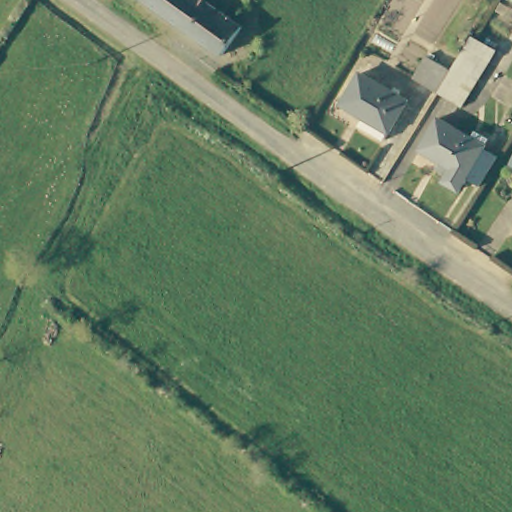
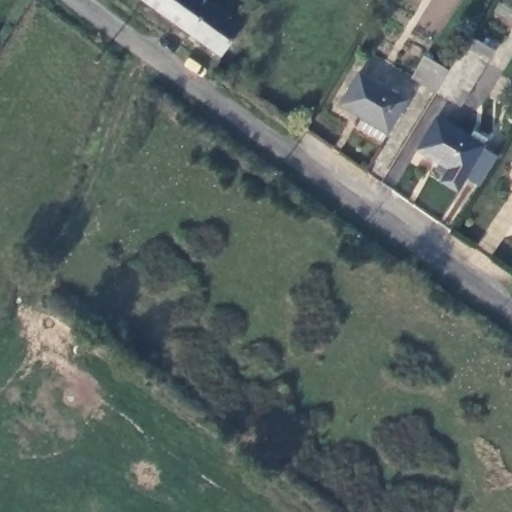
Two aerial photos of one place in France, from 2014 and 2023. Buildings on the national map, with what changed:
unchanged [(213,60),(133,0),(191,0),(233,31),(213,60)]
unchanged [(431,96),(408,82),(420,62),(444,74),(456,55),(466,39),(488,55),(480,67),(454,110),(431,96)]
unchanged [(396,102),(371,141),(349,127),(354,119),(333,106),(353,75),(396,102)]
unchanged [(432,124),(464,143),(469,137),(483,145),(451,196),(437,187),(444,175),(413,156),(432,124)]
unchanged [(512,173),(504,168),(512,154),(512,173)]

